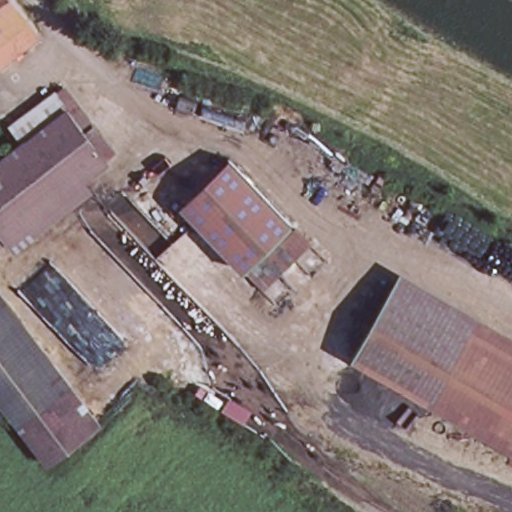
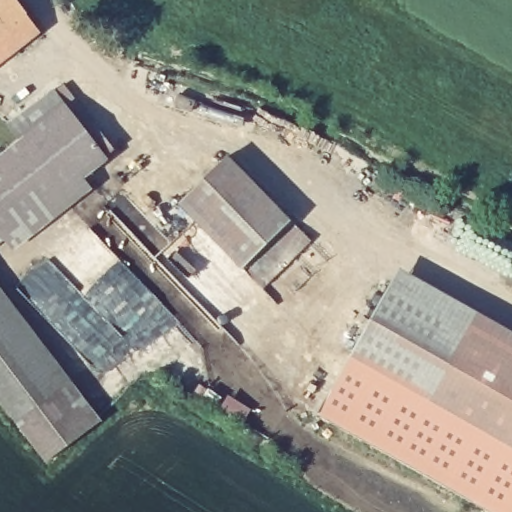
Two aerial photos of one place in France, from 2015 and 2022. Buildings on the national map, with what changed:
unchanged [(0,59),(0,0),(20,0),(41,27),(0,59)]
unchanged [(11,121),(29,107),(55,87),(64,97),(66,101),(45,119),(84,172),(3,237),(0,239),(0,151),(21,134),(11,121)]
unchanged [(91,120),(113,147),(107,153),(107,154),(84,172),(45,119),(66,101),(85,125),(91,120)]
unchanged [(230,159),(292,223),(285,230),(278,237),(245,271),(181,205),(215,172),(222,166),(230,159)]
unchanged [(297,227),(312,243),(297,258),(291,264),(264,290),(250,275),(281,244),(287,236),(297,227)]
unchanged [(512,338),(512,429),(357,341),(396,273),(512,338)]
unchanged [(52,460),(0,395),(0,310),(90,424),(52,460)]
new [(488,512),(317,415),(357,341),(512,429),(512,512),(488,512)]

